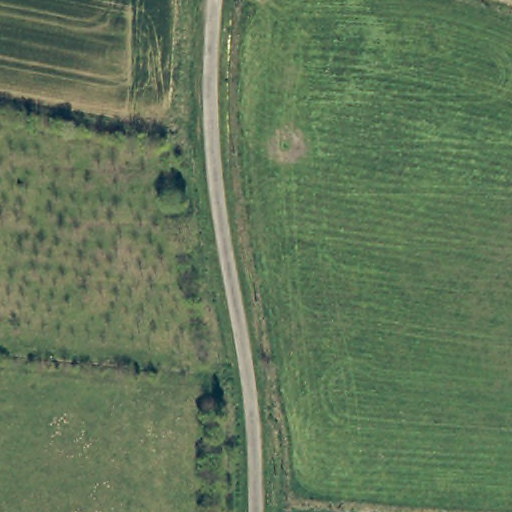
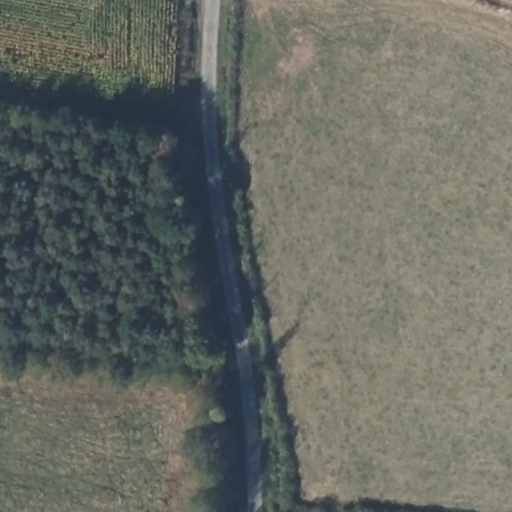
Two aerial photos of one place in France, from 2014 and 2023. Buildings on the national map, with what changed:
[]

